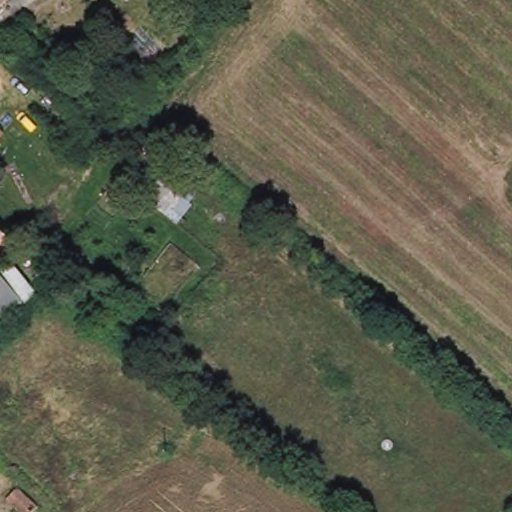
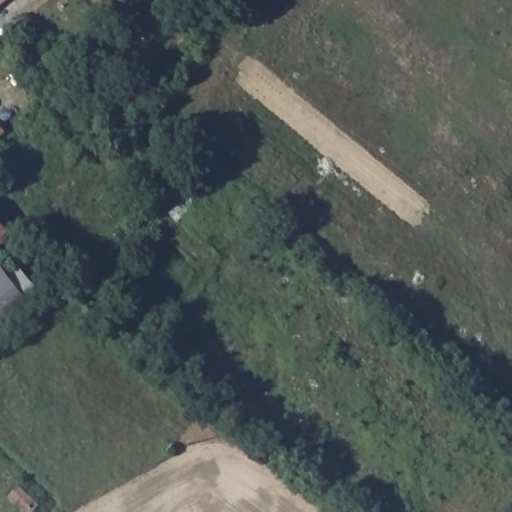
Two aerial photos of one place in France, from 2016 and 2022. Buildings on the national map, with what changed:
unchanged [(0,0),(4,0),(0,4),(0,0)]
unchanged [(0,134),(0,132),(1,133),(0,134)]
unchanged [(0,274),(0,266),(4,272),(0,274)]
unchanged [(0,322),(0,282),(20,307),(0,322)]
unchanged [(21,486),(40,506),(33,512),(24,512),(9,496),(21,486)]

